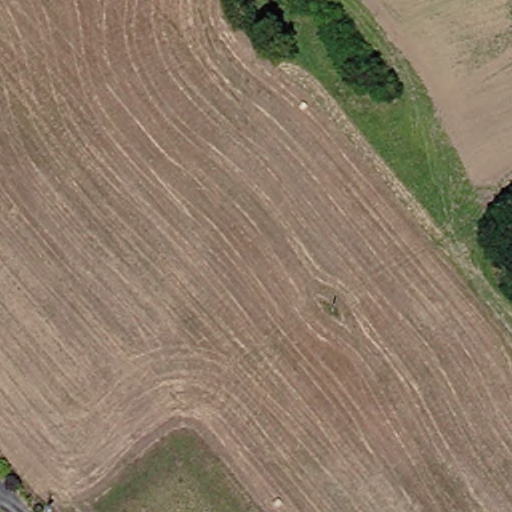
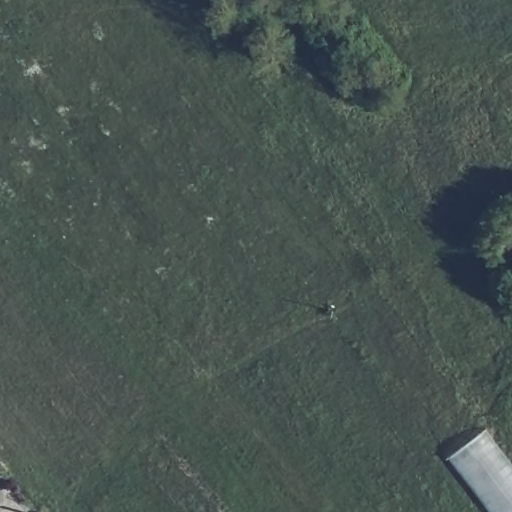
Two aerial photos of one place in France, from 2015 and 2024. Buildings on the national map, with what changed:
new [(487,429),(512,463),(512,512),(491,512),(450,457),(487,429)]

